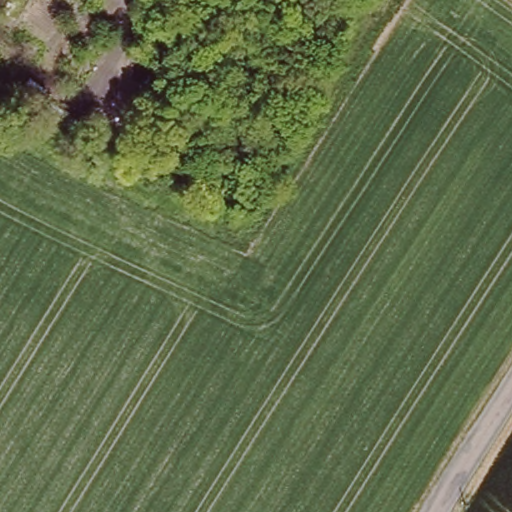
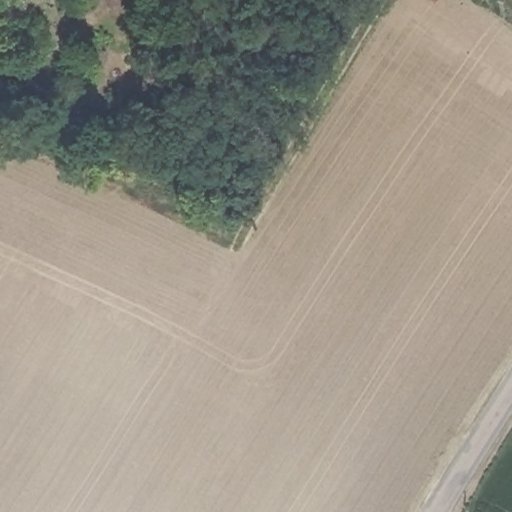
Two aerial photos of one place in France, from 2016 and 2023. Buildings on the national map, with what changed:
[]

